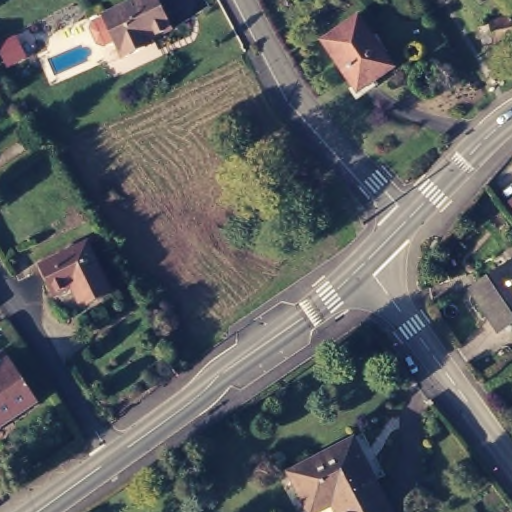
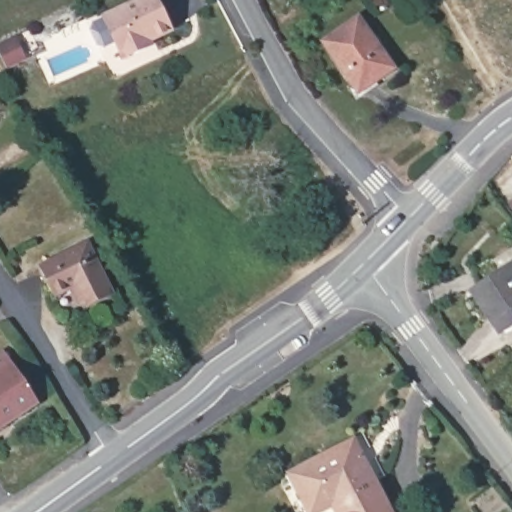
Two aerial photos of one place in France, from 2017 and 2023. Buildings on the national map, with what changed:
unchanged [(140,42),(142,47),(122,56),(103,14),(135,0),(153,0),(167,31),(146,40),(140,42)]
unchanged [(363,16),(397,67),(360,91),(327,39),(363,16)]
unchanged [(490,24),(512,17),(512,43),(497,48),(490,24)]
unchanged [(178,45),(172,47),(170,42),(176,40),(178,45)]
unchanged [(512,202),(512,209),(509,205),(512,202)]
unchanged [(92,245),(113,294),(87,305),(80,288),(58,297),(45,265),(92,245)]
unchanged [(512,265),(512,322),(508,325),(481,288),(512,265)]
unchanged [(35,413),(0,435),(0,366),(6,363),(35,413)]
unchanged [(393,512),(344,512),(339,502),(319,512),(318,512),(298,473),(357,444),(393,512)]

